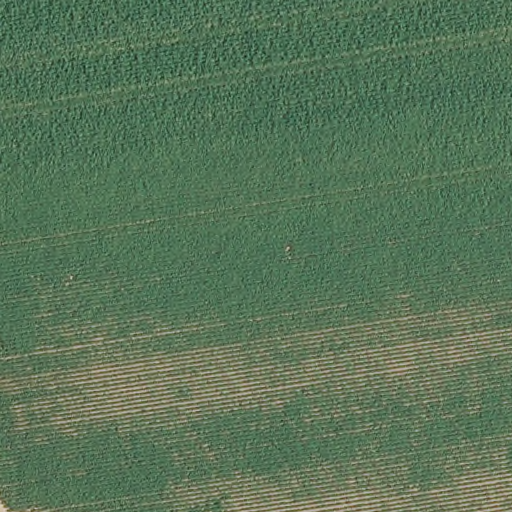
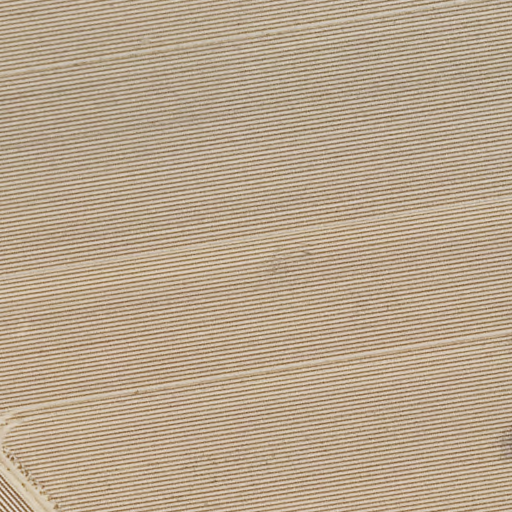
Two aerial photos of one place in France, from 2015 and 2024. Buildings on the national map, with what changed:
[]

